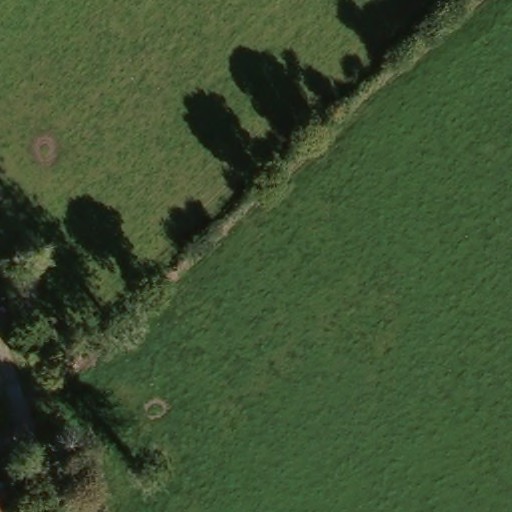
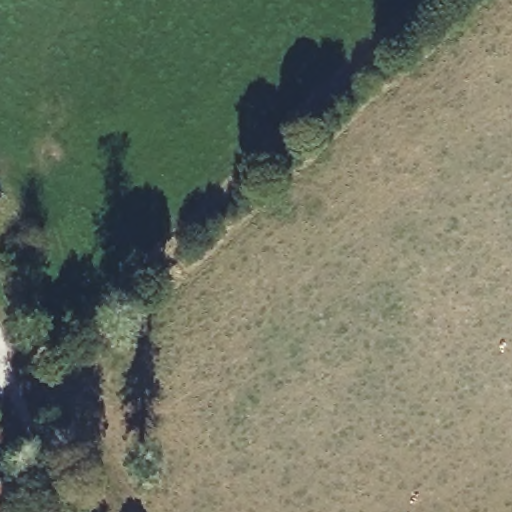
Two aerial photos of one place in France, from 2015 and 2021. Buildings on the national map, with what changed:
unchanged [(22,512),(0,512),(0,493),(9,488),(22,512)]

